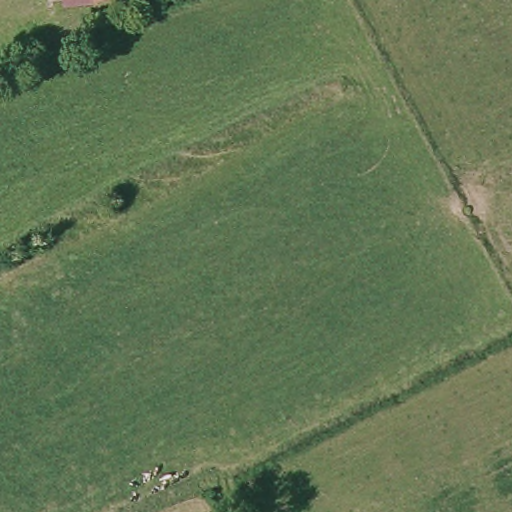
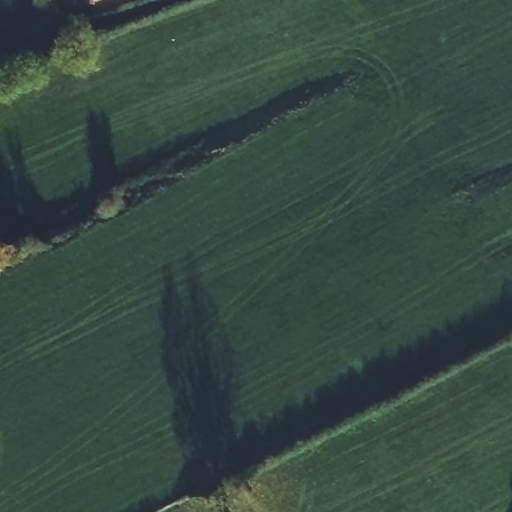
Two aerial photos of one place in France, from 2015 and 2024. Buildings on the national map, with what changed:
unchanged [(90,0),(100,0),(91,3),(90,0)]

